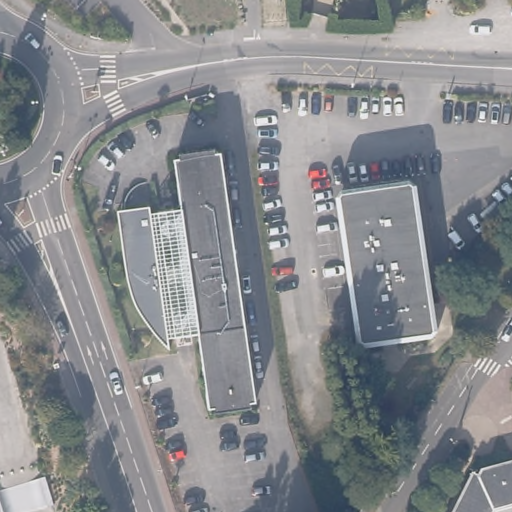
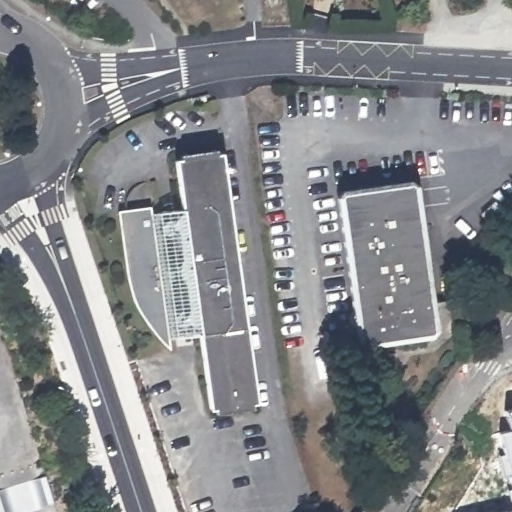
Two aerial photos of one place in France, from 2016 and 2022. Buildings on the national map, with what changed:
unchanged [(215,151),(219,151),(259,400),(255,400),(256,405),(219,411),(218,406),(213,407),(201,333),(170,337),(171,348),(164,343),(160,339),(155,334),(149,328),(144,319),(138,310),(132,299),(131,297),(117,217),(125,215),(124,209),(150,205),(151,212),(181,207),(173,158),(177,158),(177,152),(214,147),(215,151)]
unchanged [(426,303),(447,301),(451,338),(361,349),(353,342),(357,342),(340,195),(411,186),(426,303)]
demolished [(473,477),(477,470),(512,461),(512,512),(447,512),(468,474),(473,477)]

